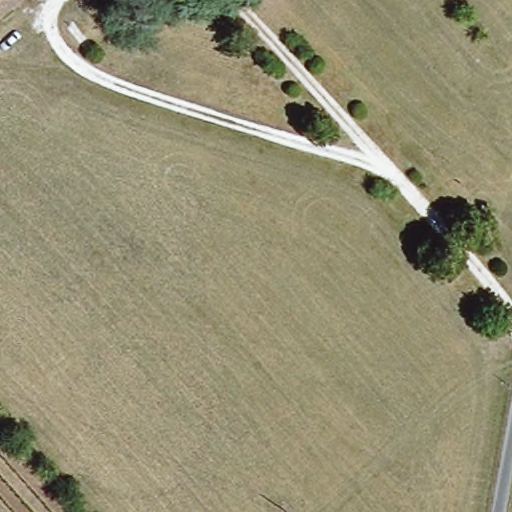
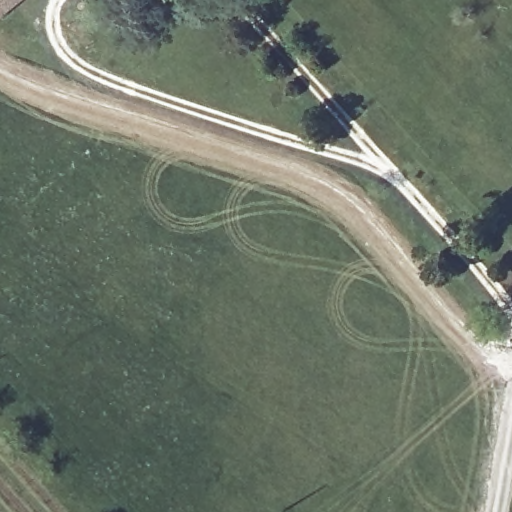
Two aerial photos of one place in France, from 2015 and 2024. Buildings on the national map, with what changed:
unchanged [(0,18),(0,0),(22,0),(0,18)]

